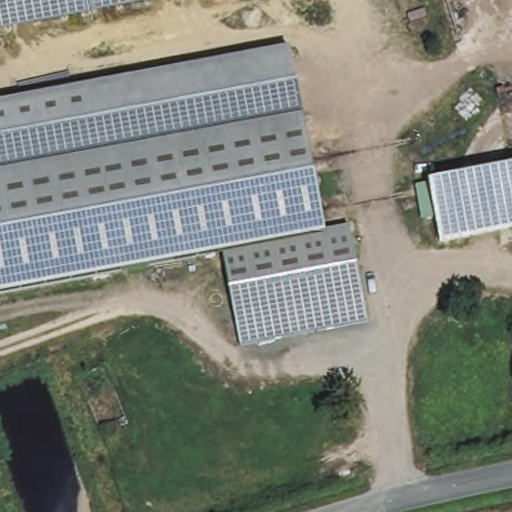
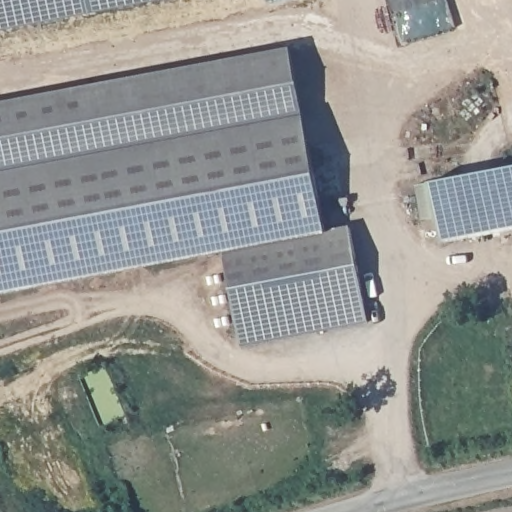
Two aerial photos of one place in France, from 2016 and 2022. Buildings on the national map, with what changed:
unchanged [(0,0),(163,0),(0,31),(0,0)]
unchanged [(0,168),(0,102),(290,47),(304,112),(257,120),(0,168)]
unchanged [(224,247),(0,291),(0,168),(304,112),(328,230),(353,224),(369,318),(240,343),(224,247)]
unchanged [(444,241),(432,186),(512,171),(512,228),(444,241)]

